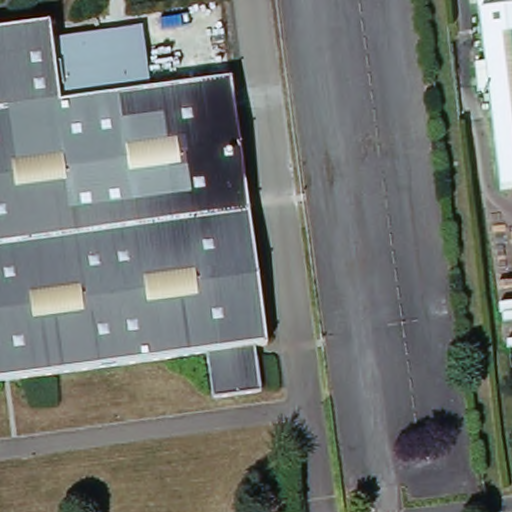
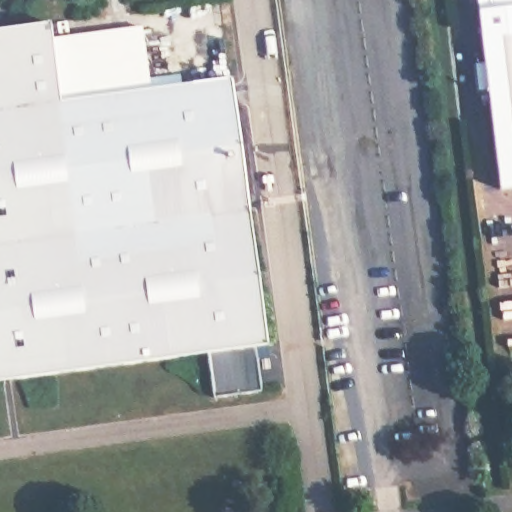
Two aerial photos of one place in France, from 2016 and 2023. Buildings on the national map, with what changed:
unchanged [(493,89),(480,91),(476,64),(489,62),(482,0),(512,0),(512,188),(505,189),(493,89)]
unchanged [(52,26),(55,43),(144,31),(153,92),(232,82),(257,259),(269,347),(258,348),(264,394),(216,401),(209,355),(0,383),(0,33),(52,26)]

